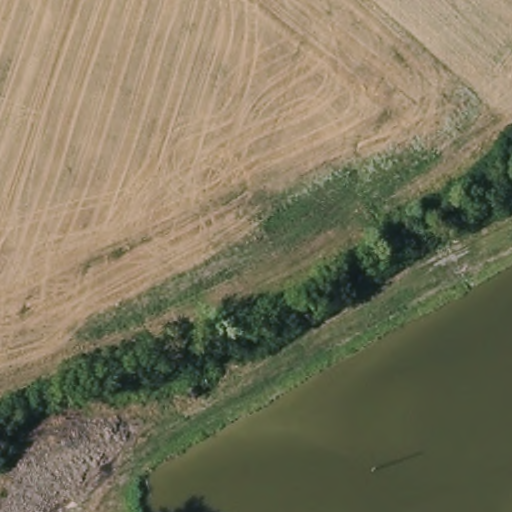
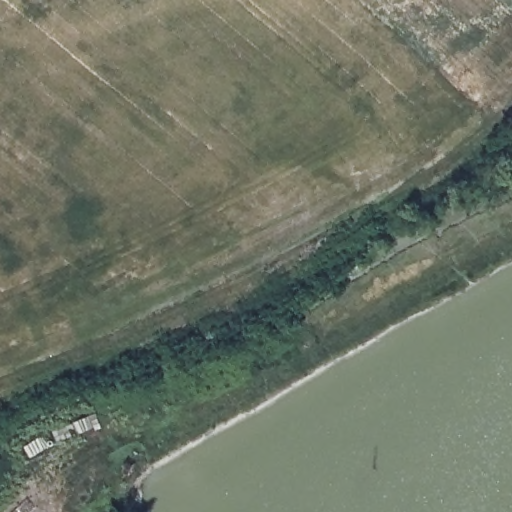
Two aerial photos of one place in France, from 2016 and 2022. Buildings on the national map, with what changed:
[]

